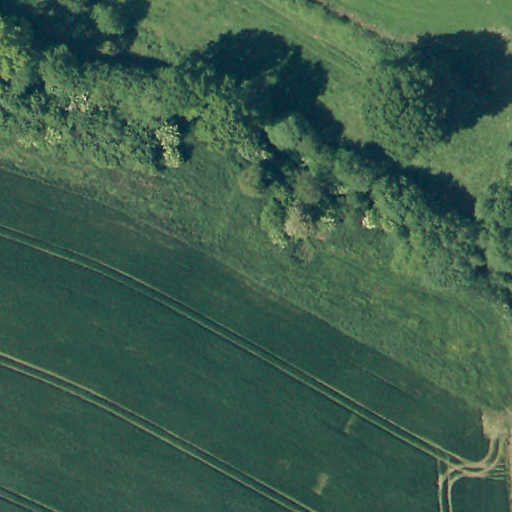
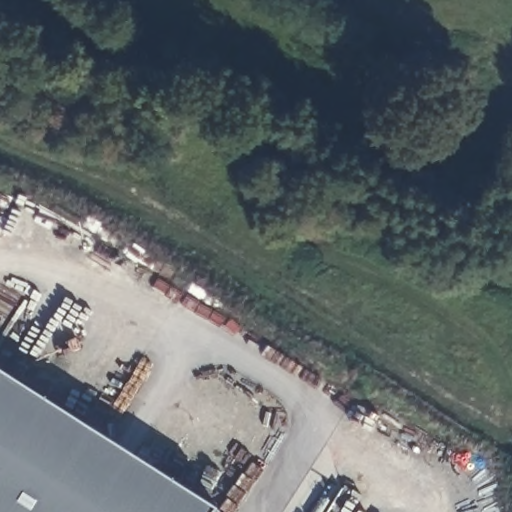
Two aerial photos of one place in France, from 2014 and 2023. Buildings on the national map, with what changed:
new [(215,512),(0,512),(0,373),(217,509),(215,512)]

